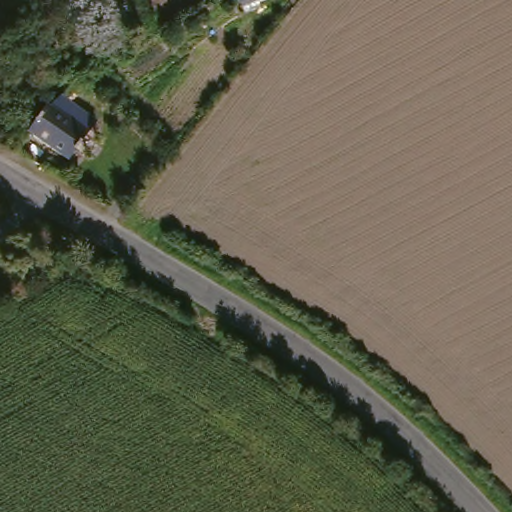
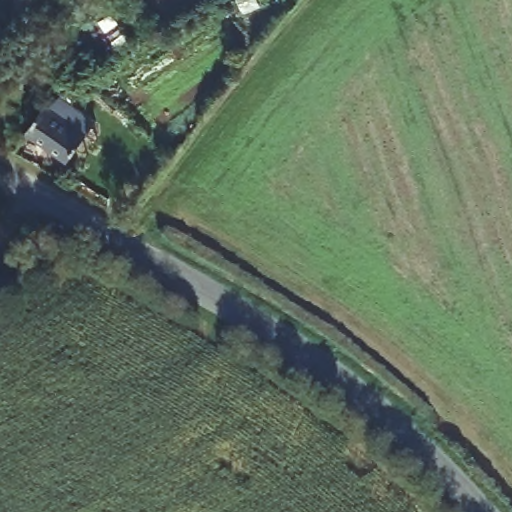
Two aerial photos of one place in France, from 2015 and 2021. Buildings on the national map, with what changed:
unchanged [(82,81),(99,65),(111,73),(100,90),(91,85),(79,100),(105,120),(95,133),(75,158),(34,132),(55,106),(82,81)]

